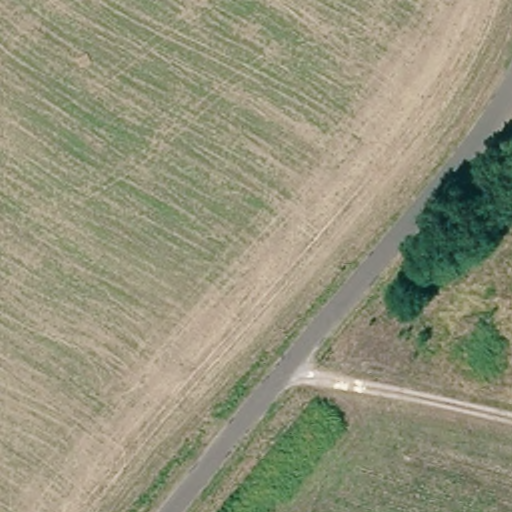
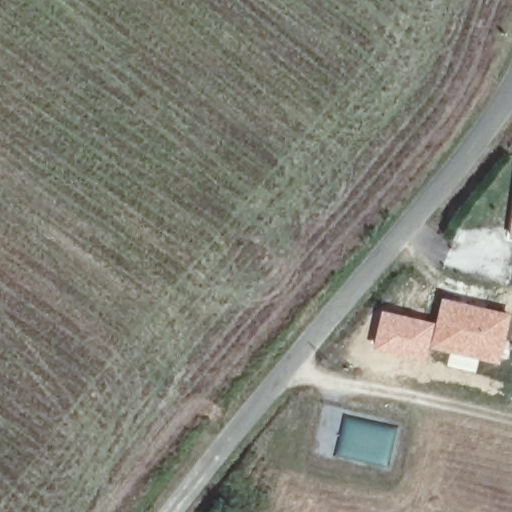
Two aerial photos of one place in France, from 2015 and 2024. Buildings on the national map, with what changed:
new [(512,213),(512,238),(508,238),(512,213)]
new [(435,321),(441,296),(511,312),(500,363),(479,358),(475,372),(446,366),(449,352),(429,347),(435,321)]
new [(381,308),(435,321),(429,347),(425,362),(371,349),(381,308)]

